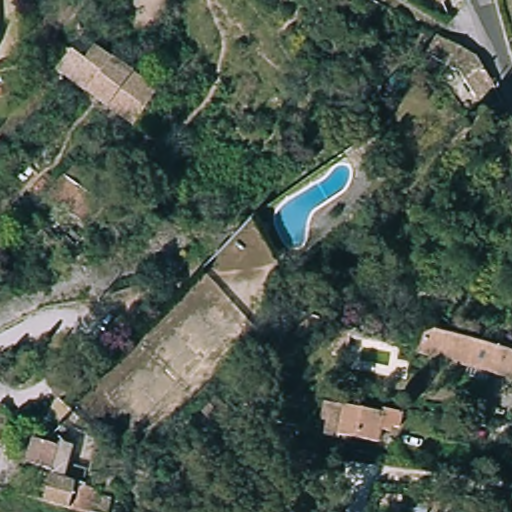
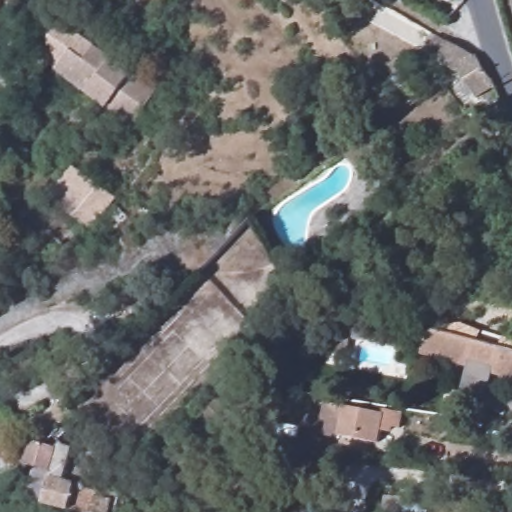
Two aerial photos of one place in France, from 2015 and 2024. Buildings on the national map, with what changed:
unchanged [(477,59),(493,87),(476,97),(455,66),(441,57),(427,50),(436,36),(477,59)]
unchanged [(51,73),(65,53),(78,63),(89,49),(152,91),(128,127),(51,73)]
unchanged [(90,188),(84,197),(95,206),(81,226),(44,200),(62,172),(90,188)]
unchanged [(435,365),(437,339),(512,345),(512,371),(435,365)]
unchanged [(83,390),(56,403),(45,379),(72,366),(83,390)]
unchanged [(321,422),(324,404),(344,407),(383,415),(384,411),(404,415),(401,430),(393,428),(393,434),(382,432),(380,445),(338,437),(324,434),(326,423),(321,422)]
unchanged [(60,405),(77,424),(70,429),(46,424),(54,406),(60,405)]
unchanged [(28,443),(53,450),(47,474),(21,467),(28,443)]
unchanged [(293,449),(318,453),(316,469),(291,465),(293,449)]
unchanged [(65,512),(61,511),(55,510),(38,506),(45,480),(50,482),(53,467),(75,473),(72,486),(106,496),(102,512),(65,512)]

